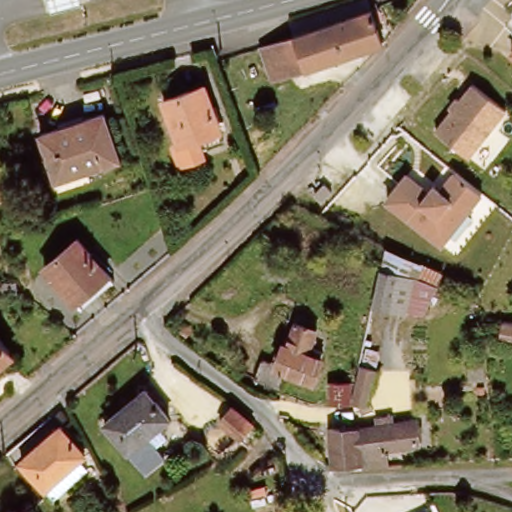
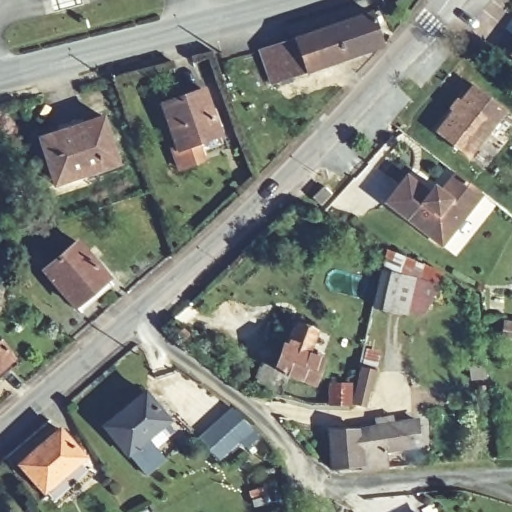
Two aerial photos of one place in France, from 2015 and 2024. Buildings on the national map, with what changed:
unchanged [(51,9),(49,0),(79,0),(79,1),(51,9)]
unchanged [(259,47),(370,6),(383,42),(273,84),(259,47)]
unchanged [(511,110),(474,158),(441,132),(478,85),(511,110)]
unchanged [(201,160),(179,168),(158,108),(199,92),(216,136),(196,145),(201,160)]
unchanged [(119,160),(55,182),(39,136),(103,115),(119,160)]
unchanged [(443,246),(388,204),(408,177),(431,195),(440,195),(457,174),(483,194),(443,246)]
unchanged [(76,302),(46,270),(74,245),(103,276),(76,302)]
unchanged [(429,305),(412,298),(408,316),(372,309),(388,249),(443,273),(429,305)]
unchanged [(13,278),(14,292),(0,293),(0,279),(13,278)]
unchanged [(497,335),(498,320),(512,321),(512,337),(497,335)]
unchanged [(274,368),(283,343),(289,345),(297,321),(321,329),(314,349),(325,352),(316,381),(288,373),(281,395),(273,392),(251,385),(258,363),(274,368)]
unchanged [(12,359),(0,369),(0,345),(12,359)]
unchanged [(350,407),(356,367),(369,370),(363,408),(350,407)]
unchanged [(329,382),(349,385),(350,407),(329,407),(329,382)]
unchanged [(100,426),(140,390),(165,418),(143,440),(157,455),(141,470),(126,454),(100,426)]
unchanged [(204,435),(231,416),(251,432),(221,456),(204,435)]
unchanged [(361,470),(354,464),(329,466),(327,428),(412,420),(414,445),(387,448),(388,468),(361,470)]
unchanged [(60,432),(85,460),(48,495),(22,467),(60,432)]
unchanged [(257,512),(251,496),(267,490),(275,512),(257,512)]

